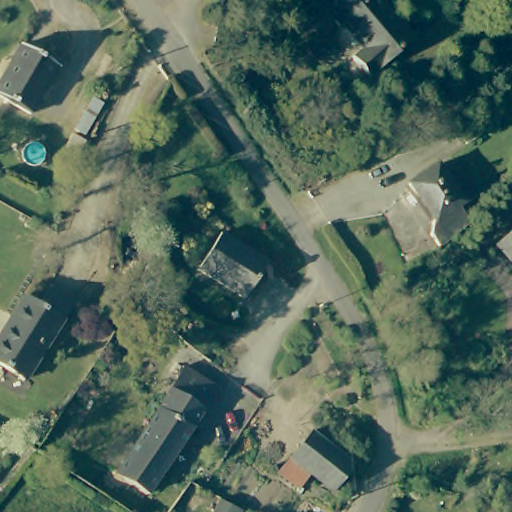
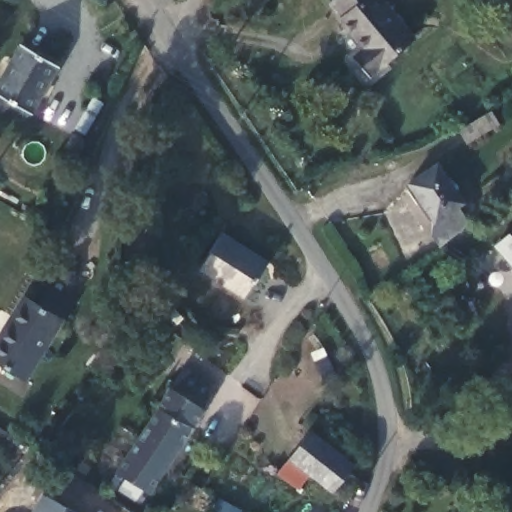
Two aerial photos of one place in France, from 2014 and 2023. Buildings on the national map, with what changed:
unchanged [(368,79),(353,60),(364,51),(340,21),(342,20),(330,6),(338,0),(381,0),(414,42),(368,79)]
unchanged [(0,97),(0,80),(21,46),(57,67),(29,115),(0,97)]
unchanged [(501,132),(473,146),(465,131),(493,116),(501,132)]
unchanged [(459,202),(454,207),(467,222),(466,224),(435,250),(425,237),(430,227),(432,225),(403,191),(430,168),(459,202)]
unchanged [(512,225),(512,268),(490,244),(512,225)]
unchanged [(195,274),(218,237),(239,251),(263,267),(259,272),(239,303),(195,274)]
unchanged [(0,365),(0,336),(23,297),(61,321),(26,381),(0,365)]
unchanged [(204,408),(148,495),(115,473),(184,366),(217,387),(204,408)]
unchanged [(278,472),(288,458),(308,431),(350,465),(330,492),(309,475),(298,488),(278,472)]
new [(69,507),(77,512),(32,512),(41,496),(69,507)]

